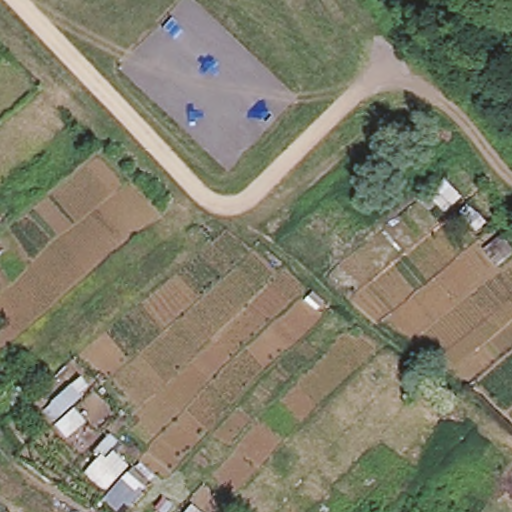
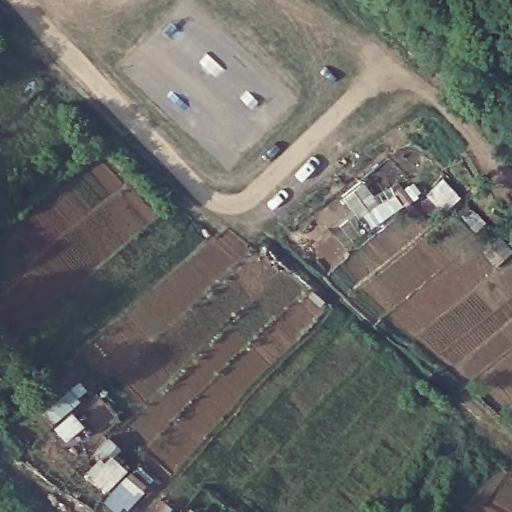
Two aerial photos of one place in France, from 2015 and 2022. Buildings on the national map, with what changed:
unchanged [(70,387),(79,403),(71,409),(73,412),(85,425),(66,441),(53,427),(42,413),(70,387)]
unchanged [(91,455),(109,436),(118,445),(111,453),(128,468),(128,470),(148,486),(128,510),(124,507),(121,512),(113,512),(101,503),(108,493),(83,476),(97,459),(91,455)]

